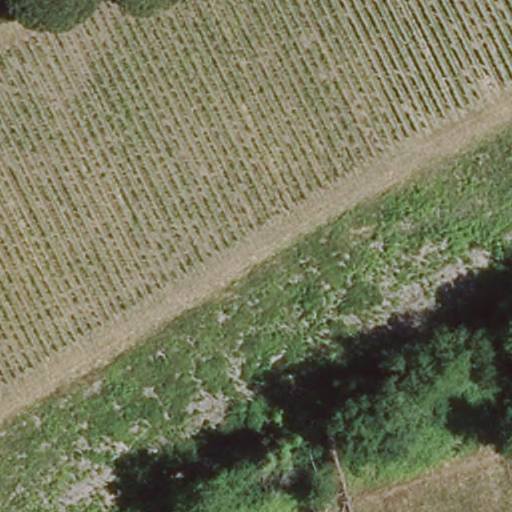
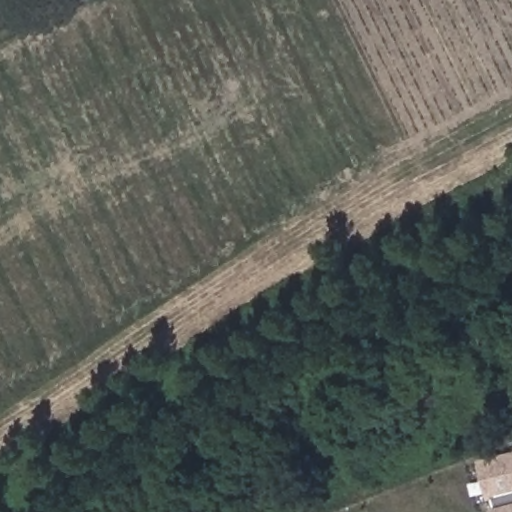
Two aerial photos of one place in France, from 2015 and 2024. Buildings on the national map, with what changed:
new [(495,509),(493,501),(488,502),(479,461),(512,455),(512,512),(490,512),(490,511),(495,509)]

